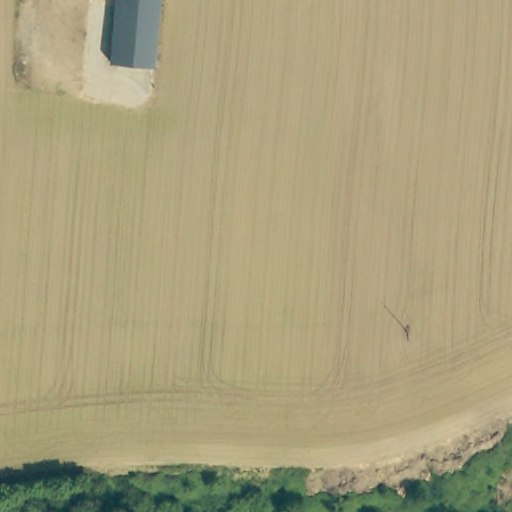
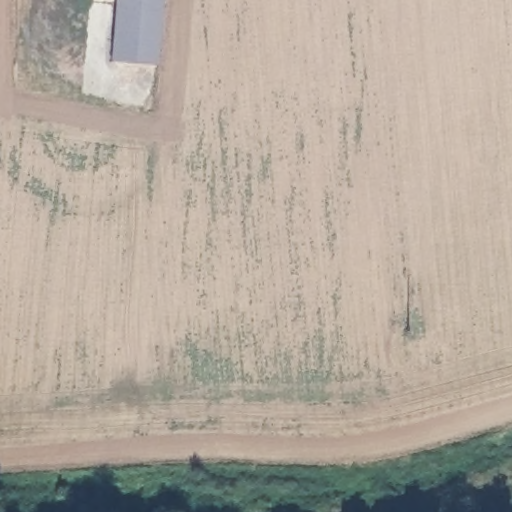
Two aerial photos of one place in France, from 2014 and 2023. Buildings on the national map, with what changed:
unchanged [(108,65),(114,0),(161,0),(154,69),(108,65)]

